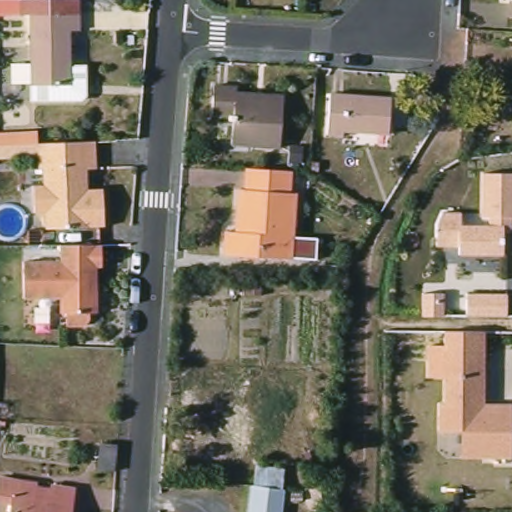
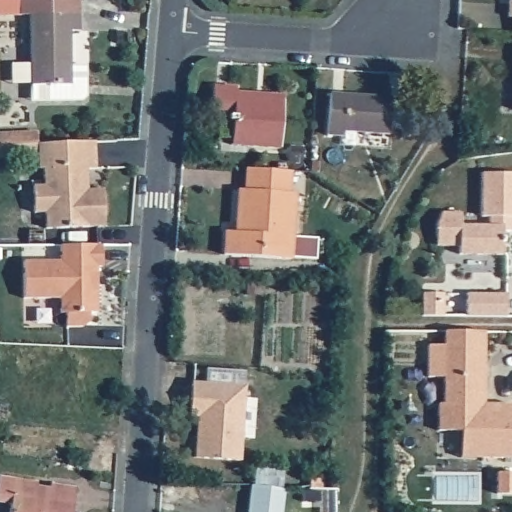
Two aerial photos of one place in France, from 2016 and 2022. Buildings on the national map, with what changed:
unchanged [(74,32),(74,67),(89,67),(90,96),(86,100),(36,101),(34,13),(9,14),(9,0),(84,0),(84,32),(74,32)]
unchanged [(285,149),(236,146),(237,117),(217,116),(217,86),(242,87),(241,98),(287,101),(285,149)]
unchanged [(393,134),(348,131),(348,137),(332,135),(334,94),(396,97),(393,134)]
unchanged [(0,157),(0,135),(26,134),(26,145),(24,145),(24,156),(0,157)]
unchanged [(104,226),(46,228),(45,212),(34,212),(33,186),(44,185),(43,168),(38,168),(37,144),(95,141),(96,168),(96,189),(102,189),(104,226)]
unchanged [(296,172),(294,192),(300,194),(296,261),(228,256),(231,231),(240,232),(243,189),(250,190),(252,169),(296,172)]
unchanged [(512,220),(500,220),(501,254),(456,255),(456,243),(435,244),(435,223),(439,212),(457,212),(458,226),(477,225),(477,175),(512,176),(512,220)]
unchanged [(102,244),(102,266),(97,267),(97,312),(90,312),(90,316),(89,320),(88,322),(85,326),(82,327),(76,327),(67,327),(67,313),(61,313),(61,297),(24,297),(23,262),(61,261),(61,245),(102,244)]
new [(467,293),(507,294),(506,317),(466,316),(467,293)]
unchanged [(438,431),(438,404),(444,404),(445,331),(484,332),(483,404),(511,404),(511,457),(482,457),(461,457),(461,431),(438,431)]
demolished [(224,382),(212,382),(212,373),(224,373),(224,382)]
new [(245,388),(239,462),(196,458),(199,418),(190,417),(192,402),(192,385),(245,388)]
unchanged [(115,453),(112,472),(97,470),(99,452),(100,443),(116,445),(115,453)]
unchanged [(281,512),(248,512),(251,486),(254,486),(256,466),(283,470),(281,487),(281,490),(283,490),(281,512)]
unchanged [(75,488),(71,512),(10,512),(11,504),(0,502),(0,478),(36,483),(36,486),(50,488),(50,485),(75,488)]

